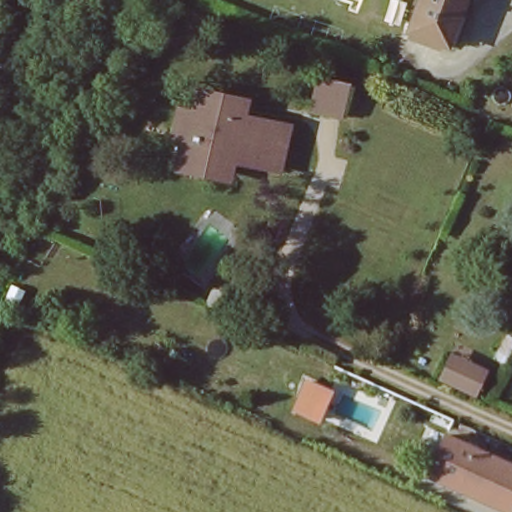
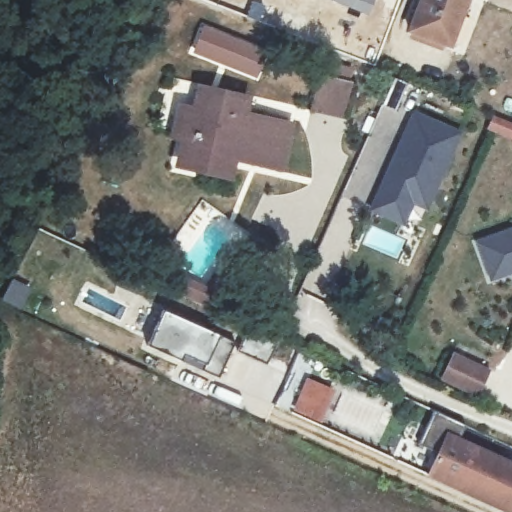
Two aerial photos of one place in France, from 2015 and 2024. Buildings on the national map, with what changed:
new [(369,15),(329,0),(375,0),(369,15)]
unchanged [(456,50),(445,45),(398,26),(408,0),(467,0),(458,23),(466,25),(456,50)]
new [(269,53),(257,82),(192,56),(202,26),(269,53)]
new [(315,73),(354,81),(346,120),(309,112),(315,73)]
unchanged [(210,174),(177,167),(183,139),(173,136),(179,111),(191,114),(196,92),(207,95),(241,102),(237,120),(281,130),(273,170),(229,160),(225,177),(210,174)]
new [(457,132),(425,207),(411,200),(402,223),(369,209),(387,169),(393,173),(405,143),(400,141),(412,113),(457,132)]
new [(512,122),(512,135),(486,125),(491,113),(512,122)]
new [(512,220),(512,263),(507,260),(477,271),(464,235),(510,219),(512,220)]
new [(218,377),(202,370),(204,364),(181,355),(179,362),(147,347),(163,311),(217,336),(234,343),(218,377)]
unchanged [(481,397),(440,379),(454,350),(490,369),(481,397)]
unchanged [(329,388),(316,416),(296,406),(309,379),(329,388)]
unchanged [(455,483),(457,478),(431,466),(446,433),(512,463),(512,501),(509,508),(455,483)]

